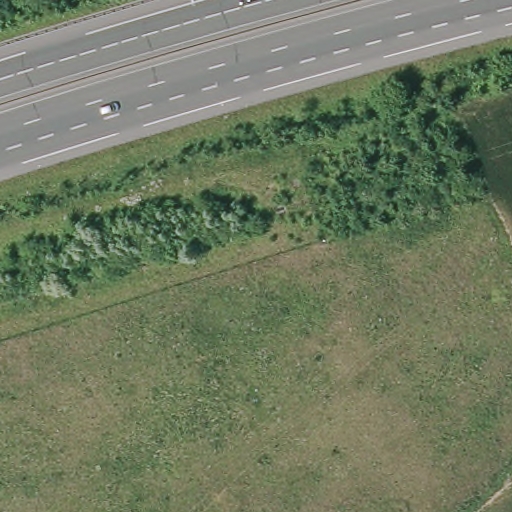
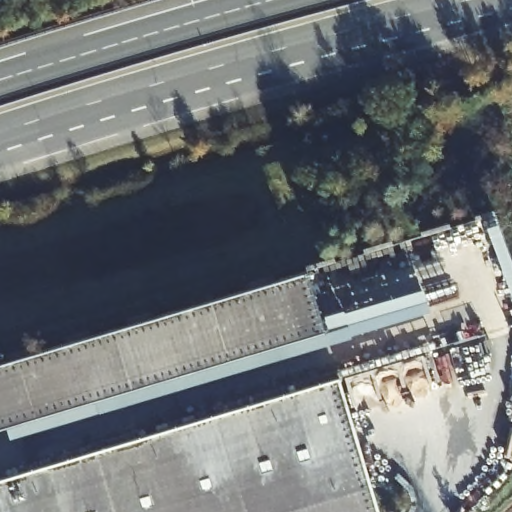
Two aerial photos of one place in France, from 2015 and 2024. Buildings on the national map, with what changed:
new [(512,296),(486,227),(498,222),(512,258),(512,296)]
new [(313,264),(329,324),(0,418),(0,354),(313,264)]
new [(343,371),(385,512),(0,512),(0,474),(343,371)]

